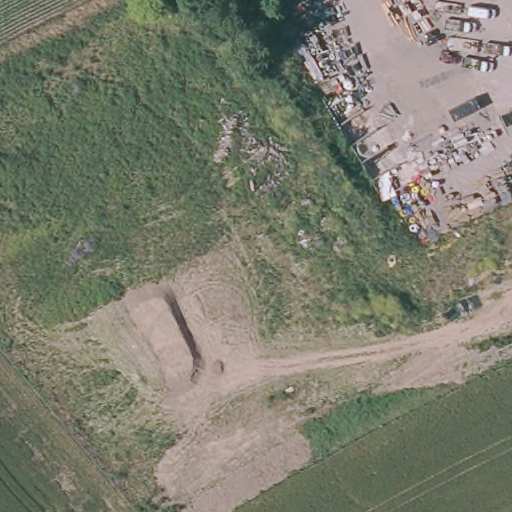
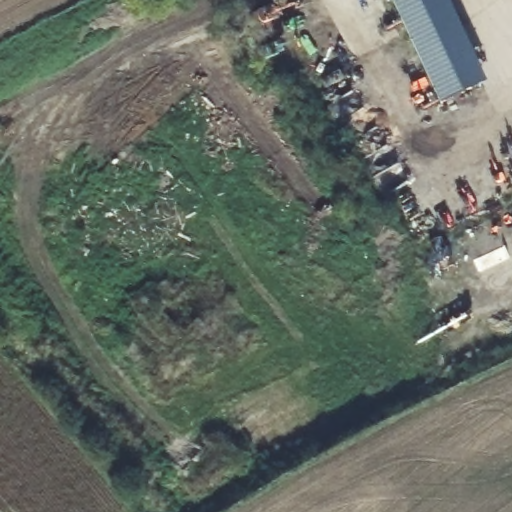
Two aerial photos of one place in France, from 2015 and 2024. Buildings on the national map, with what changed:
new [(487,83),(440,105),(391,0),(449,0),(487,83)]

